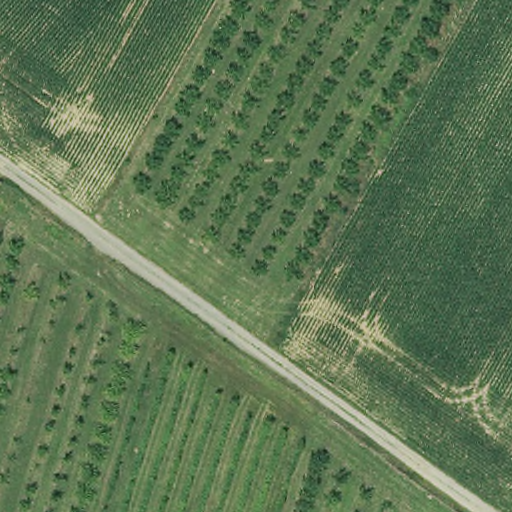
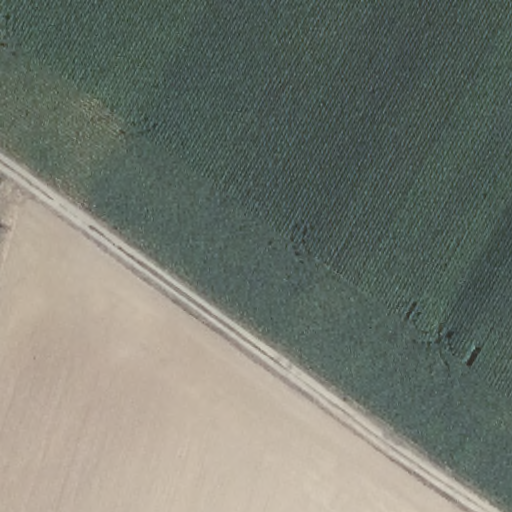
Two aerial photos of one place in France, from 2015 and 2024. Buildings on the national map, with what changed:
[]

